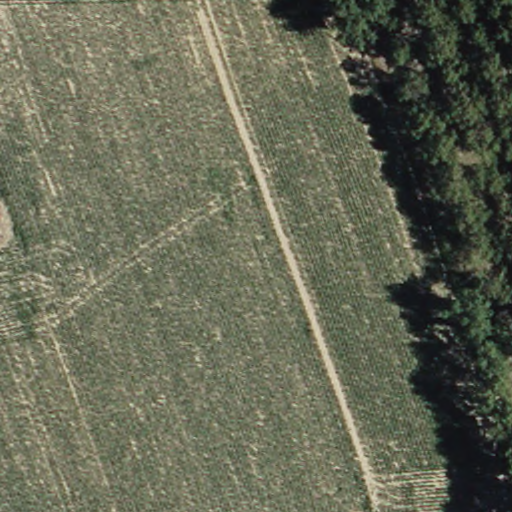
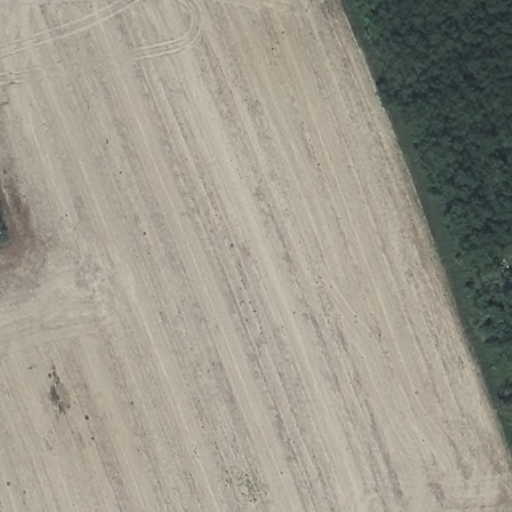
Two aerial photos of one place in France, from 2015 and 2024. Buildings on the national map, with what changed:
[]

